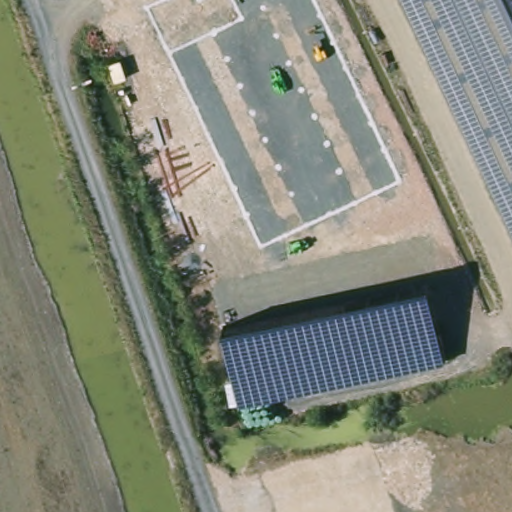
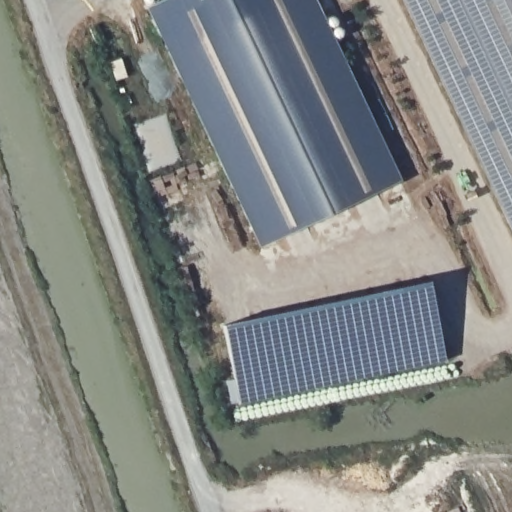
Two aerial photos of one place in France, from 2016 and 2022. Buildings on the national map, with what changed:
new [(145,0),(155,0),(156,3),(163,0),(316,0),(326,21),(332,17),(334,17),(337,18),(339,19),(344,31),(344,34),(344,36),(342,38),(335,41),(401,179),(260,247),(148,7),(145,0)]
unchanged [(405,0),(512,0),(512,222),(405,0)]
unchanged [(446,358),(238,400),(223,323),(431,281),(446,358)]

